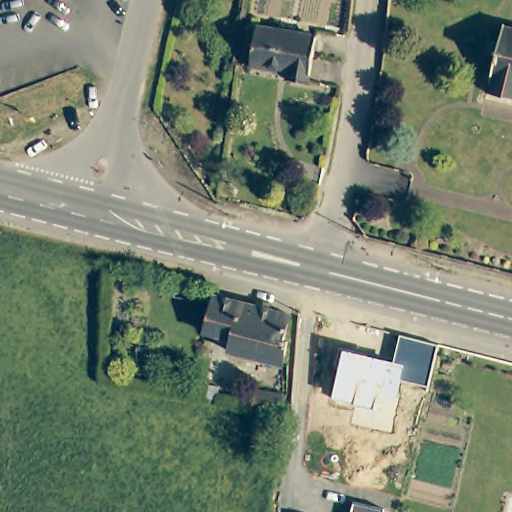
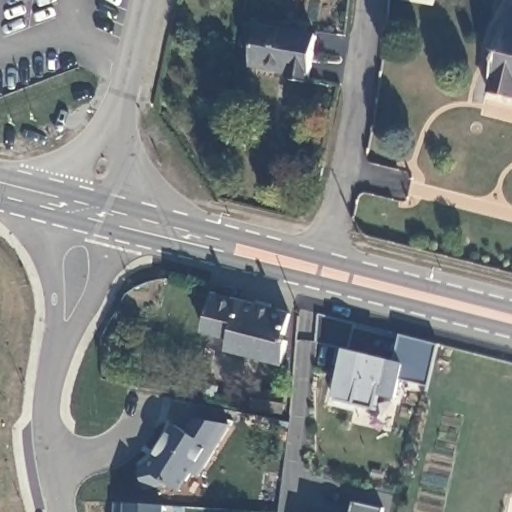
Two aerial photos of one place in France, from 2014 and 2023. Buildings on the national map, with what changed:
unchanged [(512,26),(512,97),(490,91),(493,78),(492,77),(505,24),(512,26)]
unchanged [(317,35),(310,81),(289,77),(290,70),(252,64),(258,25),(317,35)]
unchanged [(295,309),(289,334),(294,337),(288,359),(235,345),(237,334),(210,327),(219,289),(295,309)]
unchanged [(395,360),(400,334),(437,343),(427,386),(401,380),(394,411),(333,395),(344,349),(395,360)]
unchanged [(291,389),(288,408),(258,402),(261,383),(291,389)]
new [(201,475),(194,472),(180,492),(166,484),(142,490),(136,472),(145,469),(172,421),(187,432),(197,419),(236,424),(201,475)]
new [(168,512),(115,512),(115,502),(127,501),(169,504),(168,512)]
unchanged [(352,503),(383,509),(383,512),(351,512),(352,503)]

